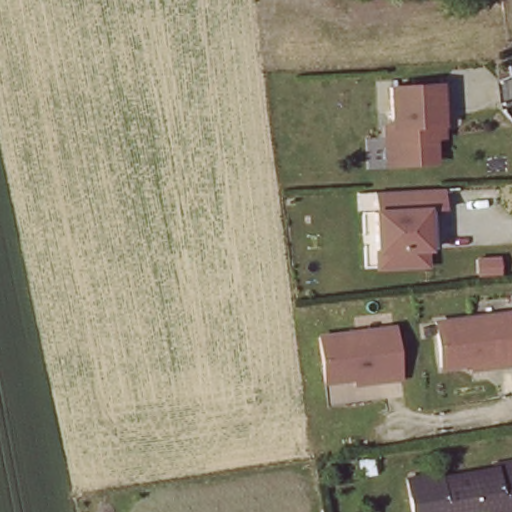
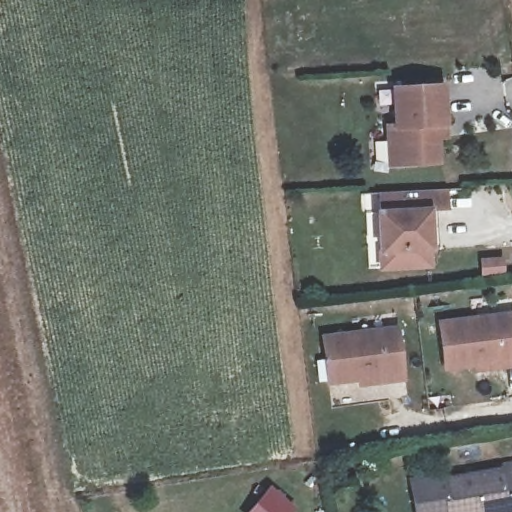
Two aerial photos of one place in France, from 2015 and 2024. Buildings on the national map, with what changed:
unchanged [(391,140),(391,121),(398,121),(397,84),(448,83),(449,120),(449,131),(440,131),(441,159),(400,160),(391,161),(391,140)]
unchanged [(414,250),(415,266),(367,268),(365,213),(380,212),(380,192),(432,190),(433,211),(423,212),(424,249),(414,250)]
unchanged [(471,361),(440,364),(435,319),(510,311),(512,334),(512,362),(498,364),(471,367),(471,361)]
unchanged [(354,379),(324,382),(319,337),(393,329),(399,380),(381,382),(355,384),(354,379)]
unchanged [(495,473),(494,468),(512,464),(512,512),(409,512),(406,489),(436,483),(495,473)]
new [(296,508),(293,512),(248,512),(271,486),(296,508)]

